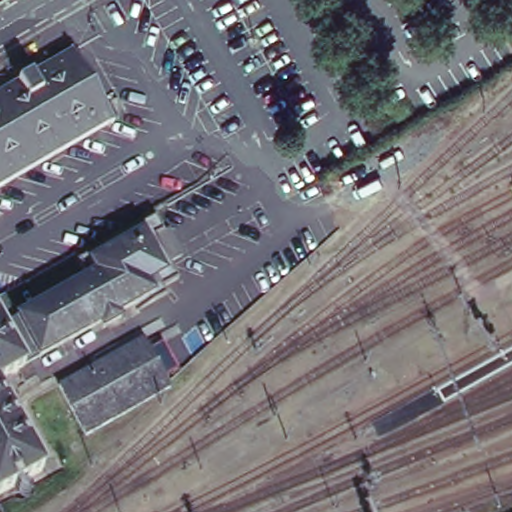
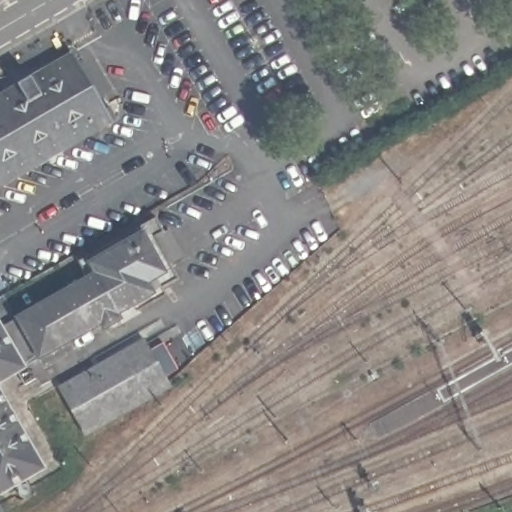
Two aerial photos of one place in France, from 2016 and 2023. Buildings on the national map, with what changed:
unchanged [(72,52),(112,122),(0,186),(0,94),(72,52)]
unchanged [(169,229),(184,256),(169,264),(154,238),(169,229)]
unchanged [(3,294),(17,319),(95,275),(89,263),(143,232),(164,272),(146,282),(153,293),(116,314),(119,319),(103,328),(100,324),(0,382),(0,296),(3,294)]
unchanged [(63,387),(148,339),(176,387),(90,435),(63,387)]
unchanged [(43,468),(0,493),(0,395),(43,468)]

